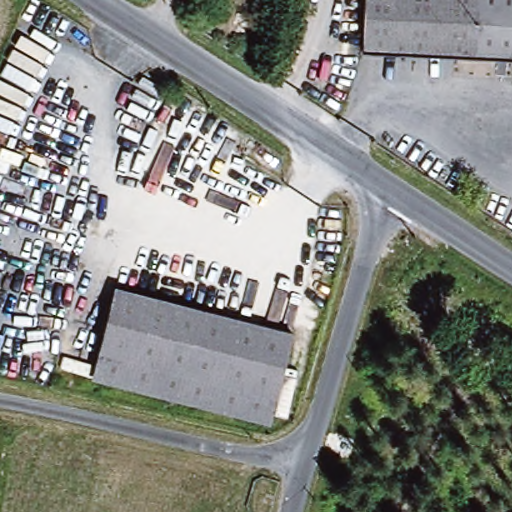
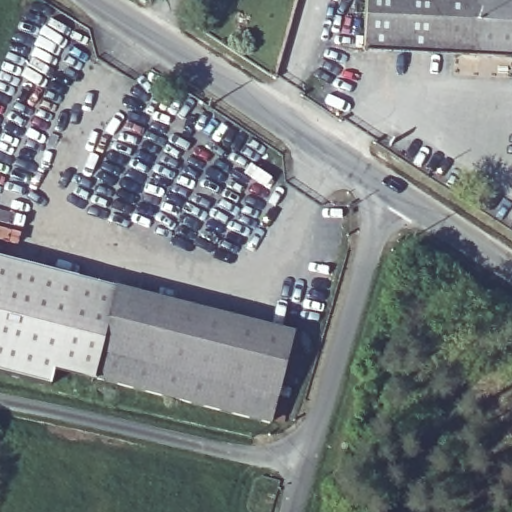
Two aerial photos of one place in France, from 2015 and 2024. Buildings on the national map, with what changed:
unchanged [(365,48),(366,0),(512,0),(512,55),(365,48)]
new [(0,376),(0,261),(75,280),(49,388),(0,376)]
new [(92,380),(53,371),(75,280),(115,288),(92,380)]
unchanged [(271,423),(92,380),(115,288),(293,331),(271,423)]

